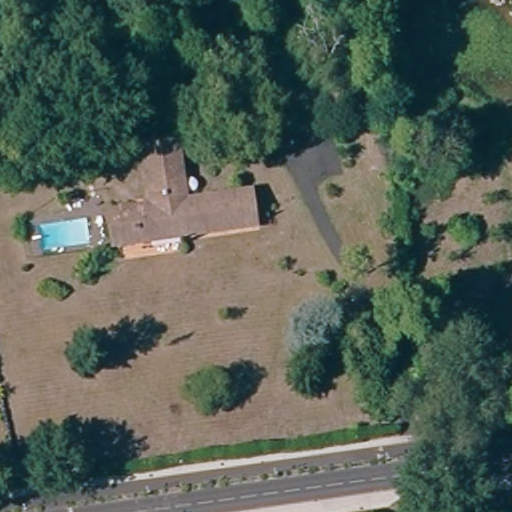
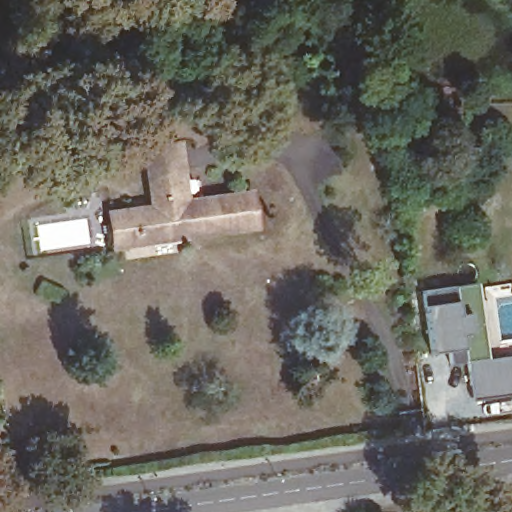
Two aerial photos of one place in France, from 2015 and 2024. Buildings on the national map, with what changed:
unchanged [(182,139),(190,197),(253,190),(256,222),(117,241),(113,209),(158,202),(150,142),(182,139)]
new [(471,400),(466,362),(450,364),(447,352),(430,355),(423,305),(423,292),(476,285),(487,357),(512,355),(512,394),(471,400)]

